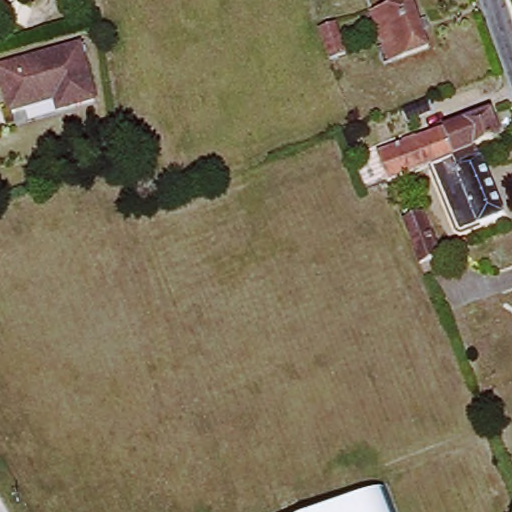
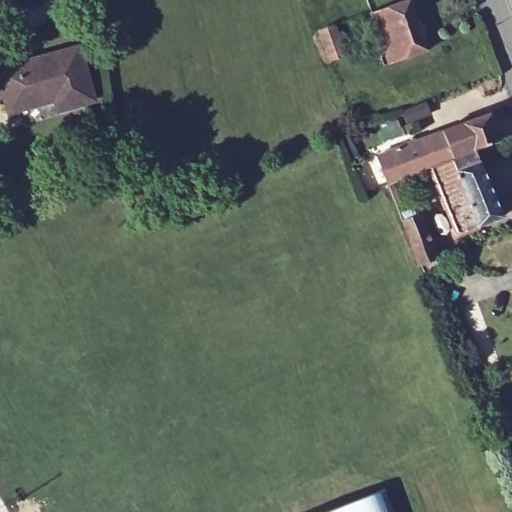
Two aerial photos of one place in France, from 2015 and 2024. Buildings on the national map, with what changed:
unchanged [(391,65),(373,15),(413,1),(432,51),(391,65)]
unchanged [(329,55),(320,31),(323,30),(335,26),(343,50),(329,55)]
unchanged [(58,112),(56,102),(9,113),(0,70),(84,50),(97,103),(58,112)]
unchanged [(460,235),(435,170),(389,187),(378,157),(493,116),(504,142),(480,151),(485,162),(506,217),(460,235)]
unchanged [(423,212),(439,255),(420,262),(404,217),(423,212)]
unchanged [(395,512),(322,512),(385,487),(395,512)]

